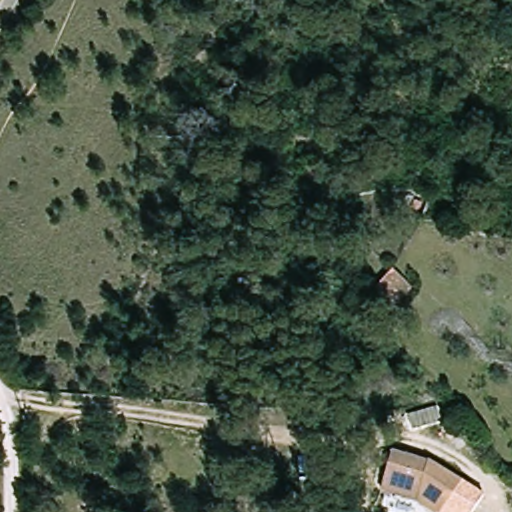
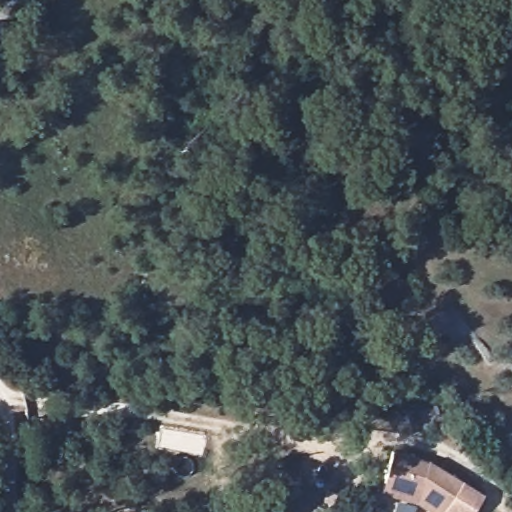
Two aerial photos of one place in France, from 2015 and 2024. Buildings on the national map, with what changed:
unchanged [(380,285),(399,269),(419,289),(401,304),(380,285)]
unchanged [(416,502),(387,481),(391,473),(406,448),(440,466),(470,489),(451,512),(430,512),(416,502)]

